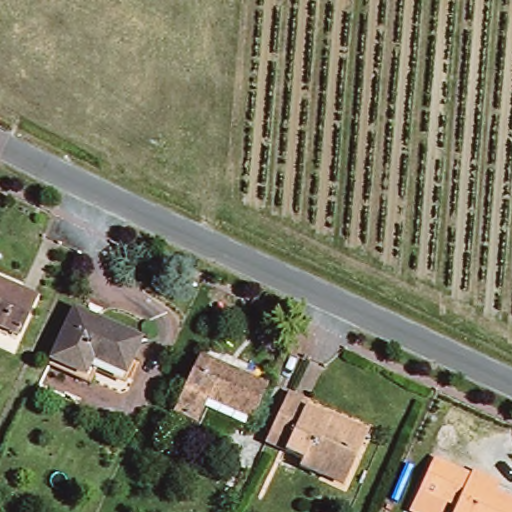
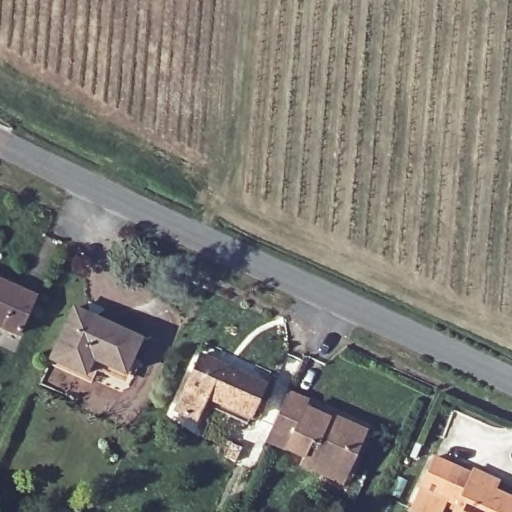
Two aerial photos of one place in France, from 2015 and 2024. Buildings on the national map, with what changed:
unchanged [(34,292),(15,334),(0,327),(0,276),(34,292)]
unchanged [(69,306),(122,330),(108,363),(87,353),(75,372),(46,358),(69,306)]
unchanged [(248,413),(209,395),(198,419),(176,409),(201,356),(261,384),(248,413)]
unchanged [(307,406),(340,422),(343,415),(367,427),(347,474),(306,455),(308,448),(292,440),(296,429),(278,421),(292,390),(312,398),(307,406)]
unchanged [(512,494),(512,512),(454,512),(457,505),(420,485),(436,453),(472,471),(476,465),(503,477),(498,488),(512,494)]

